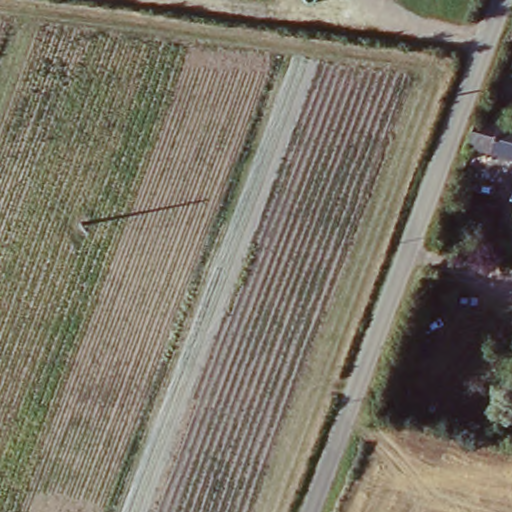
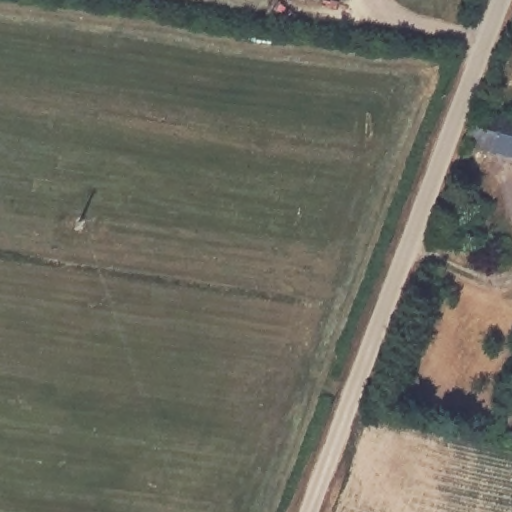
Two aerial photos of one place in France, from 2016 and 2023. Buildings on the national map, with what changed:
unchanged [(477,113),(512,123),(512,158),(465,146),(477,113)]

